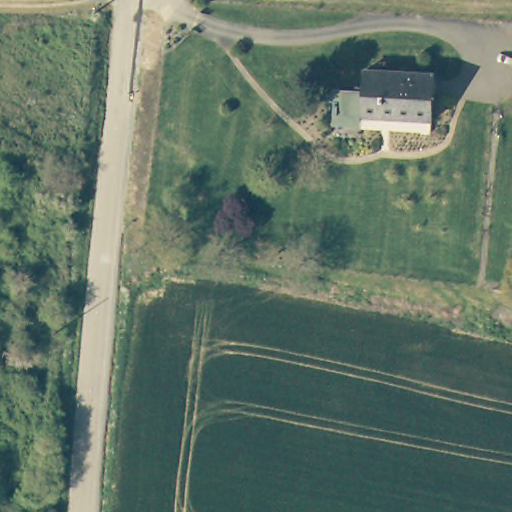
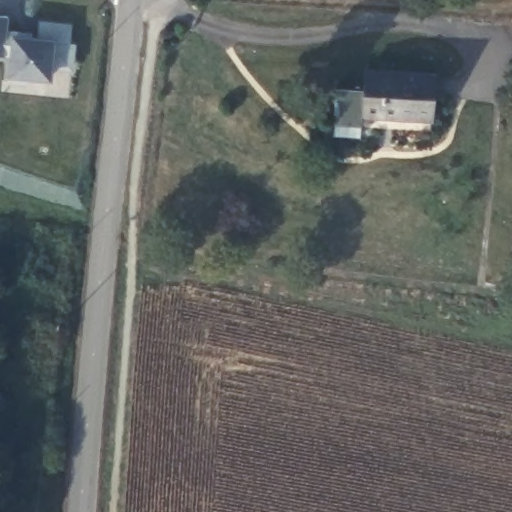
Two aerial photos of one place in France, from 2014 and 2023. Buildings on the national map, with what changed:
new [(71,42),(77,43),(73,70),(53,68),(52,80),(28,78),(28,85),(8,84),(9,76),(11,55),(0,54),(0,15),(11,16),(10,28),(32,31),(32,35),(39,36),(38,19),(72,23),(71,42)]
unchanged [(337,114),(338,89),(367,91),(368,70),(438,74),(436,120),(366,116),(337,114)]

